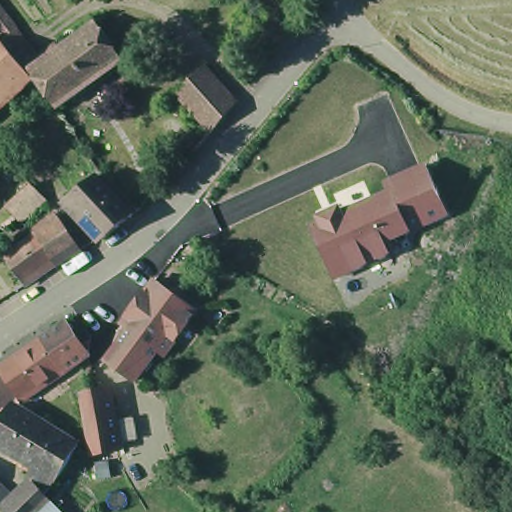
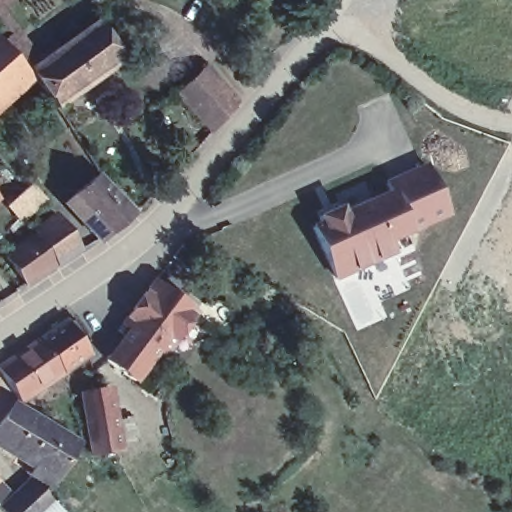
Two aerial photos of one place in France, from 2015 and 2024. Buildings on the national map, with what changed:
unchanged [(0,3),(25,34),(8,49),(0,39),(0,3)]
unchanged [(58,59),(97,31),(123,69),(55,117),(30,80),(58,59)]
unchanged [(8,49),(25,34),(44,63),(55,56),(58,59),(30,80),(27,82),(4,52),(5,51),(8,49)]
unchanged [(28,85),(0,111),(0,47),(4,52),(27,82),(28,85)]
unchanged [(178,97),(204,70),(237,105),(236,107),(213,135),(178,97)]
unchanged [(452,219),(394,243),(399,258),(336,284),(314,232),(323,229),(318,216),(344,206),(345,209),(390,190),(388,184),(426,169),(452,219)]
unchanged [(71,200),(101,176),(138,214),(108,238),(106,236),(71,200)]
unchanged [(40,194),(46,200),(23,221),(21,222),(5,206),(31,184),(40,194)]
unchanged [(55,216),(80,249),(56,264),(34,234),(33,233),(32,231),(55,216)]
unchanged [(34,234),(56,264),(25,284),(4,255),(33,233),(34,234)]
unchanged [(179,294),(187,299),(183,304),(199,316),(168,359),(162,355),(164,352),(148,340),(159,325),(140,310),(158,285),(176,299),(179,294)]
unchanged [(133,334),(126,329),(140,310),(159,325),(148,340),(164,352),(162,355),(138,385),(110,364),(133,334)]
unchanged [(30,394),(19,401),(0,374),(0,365),(65,320),(65,321),(66,322),(73,318),(87,339),(80,344),(81,345),(87,353),(30,394)]
unchanged [(86,459),(76,396),(88,394),(100,391),(103,405),(105,404),(113,452),(112,454),(86,459)]
unchanged [(0,393),(9,402),(0,409),(0,393)]
unchanged [(33,466),(8,450),(0,445),(0,421),(13,405),(78,443),(58,476),(55,479),(50,486),(28,473),(33,466)]
unchanged [(2,510),(30,481),(44,493),(50,499),(38,512),(4,512),(2,510)]
unchanged [(50,499),(63,512),(38,512),(50,499)]

